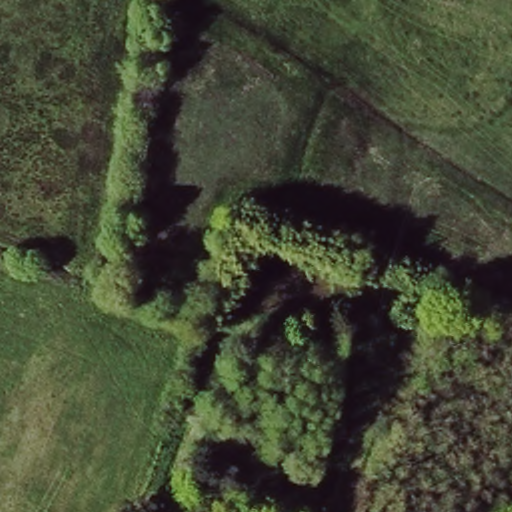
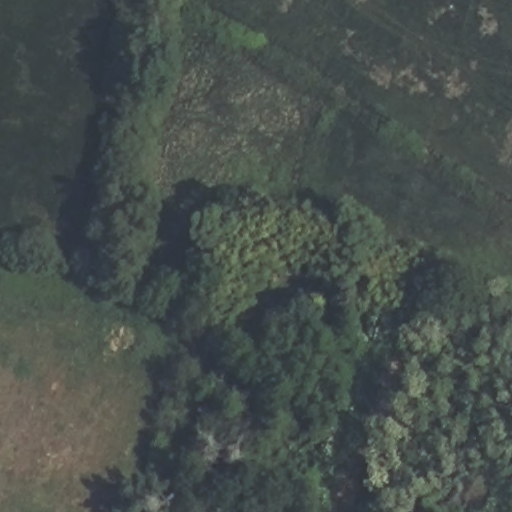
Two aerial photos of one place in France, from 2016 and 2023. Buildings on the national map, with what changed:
[]

